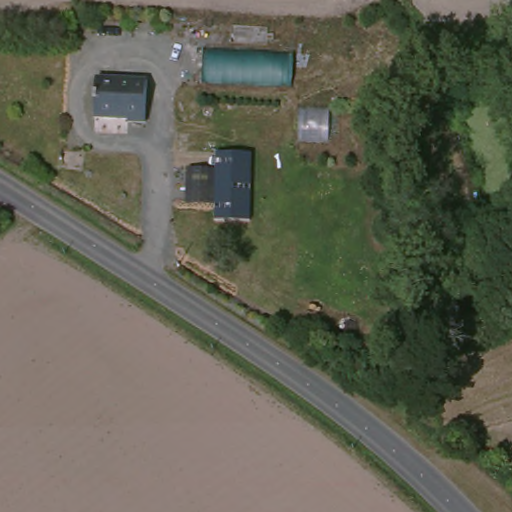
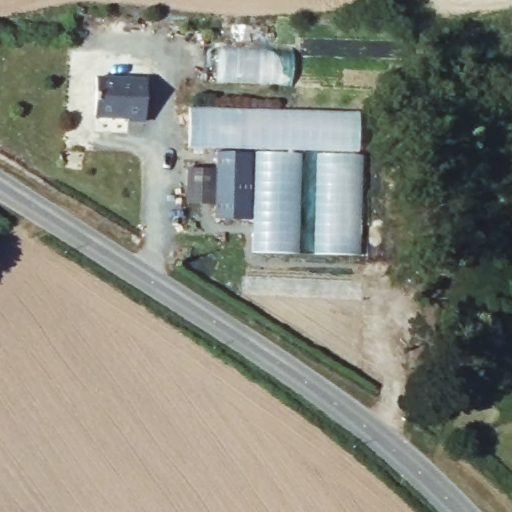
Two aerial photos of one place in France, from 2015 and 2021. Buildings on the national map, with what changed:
unchanged [(198,87),(199,53),(294,57),(291,92),(198,87)]
unchanged [(144,80),(143,121),(126,121),(126,118),(93,118),(94,79),(144,80)]
new [(359,150),(191,147),(189,107),(359,111),(359,150)]
unchanged [(252,217),(216,216),(216,202),(189,202),(188,172),(214,171),(215,153),(253,151),(252,217)]
new [(256,249),(256,152),(301,154),(299,252),(256,249)]
new [(315,253),(316,153),(363,154),(360,252),(315,253)]

